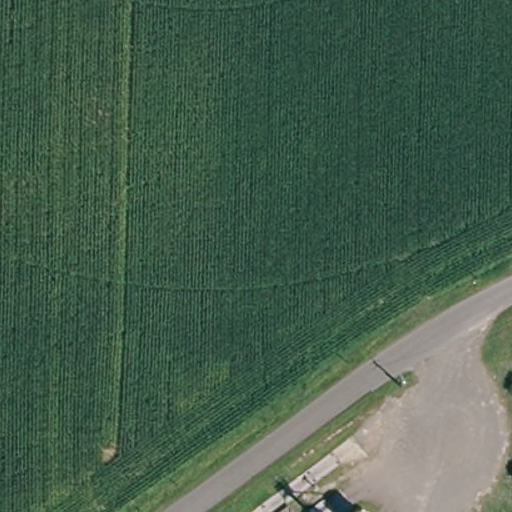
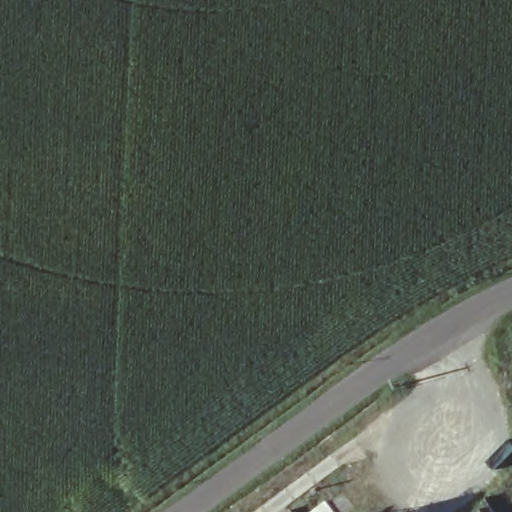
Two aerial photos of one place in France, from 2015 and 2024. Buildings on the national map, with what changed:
unchanged [(347,508),(349,512),(342,512),(347,508)]

